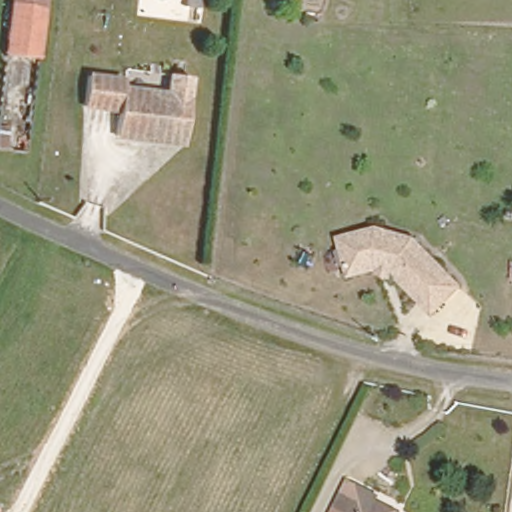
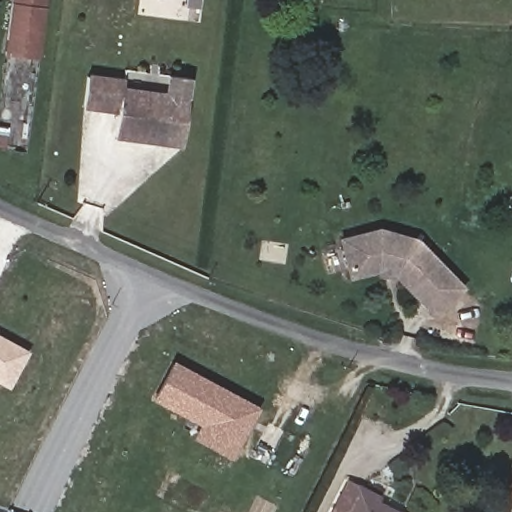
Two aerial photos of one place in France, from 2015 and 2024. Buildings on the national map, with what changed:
unchanged [(1,53),(8,0),(46,0),(39,59),(1,53)]
unchanged [(182,151),(115,142),(118,117),(85,112),(88,82),(124,86),(124,95),(168,101),(171,81),(191,84),(188,104),(182,151)]
unchanged [(435,317),(394,276),(382,273),(350,280),(336,237),(381,227),(420,238),(467,287),(435,317)]
new [(6,388),(0,385),(0,335),(28,351),(6,388)]
new [(199,426),(152,401),(174,361),(260,407),(232,460),(192,438),(199,426)]
unchanged [(335,511),(348,485),(362,492),(377,501),(375,507),(383,512),(335,512),(335,511)]

